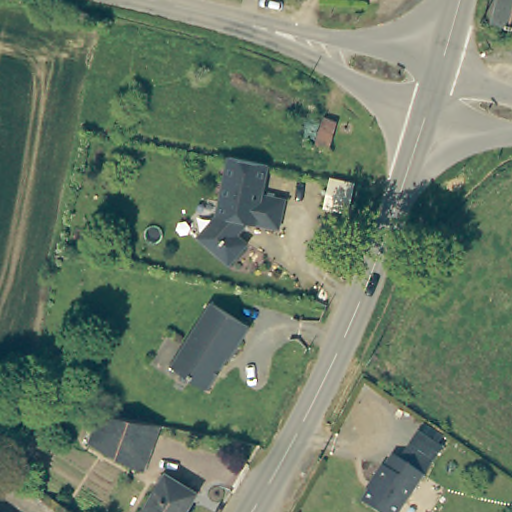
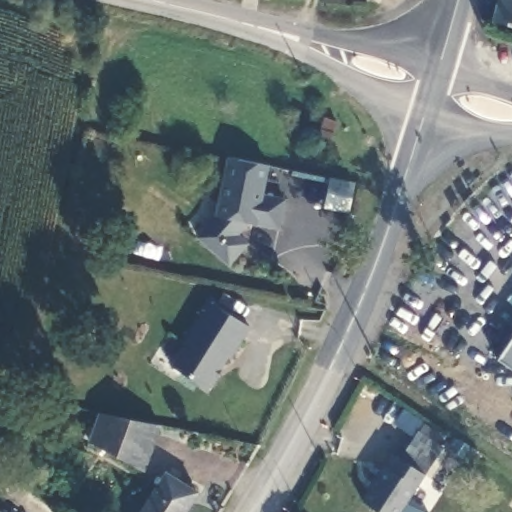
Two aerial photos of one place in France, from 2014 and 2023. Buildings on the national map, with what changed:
unchanged [(489,23),(495,0),(512,0),(512,29),(489,23)]
unchanged [(323,117),(337,121),(330,145),(317,141),(323,117)]
unchanged [(282,197),(276,226),(244,219),(235,232),(245,240),(227,262),(196,236),(213,214),(226,154),(265,162),(258,192),(282,197)]
unchanged [(356,180),(349,209),(325,204),(331,175),(356,180)]
unchanged [(224,359),(221,357),(200,389),(164,365),(207,301),(244,326),(224,359)]
new [(498,358),(512,337),(512,367),(498,358)]
unchanged [(144,468),(91,443),(101,411),(162,422),(144,468)]
unchanged [(370,475),(380,460),(382,462),(390,449),(422,472),(393,512),(380,512),(357,496),(371,476),(370,475)]
unchanged [(167,474),(198,494),(187,512),(142,512),(167,474)]
unchanged [(0,510),(3,512),(0,512),(0,510)]

